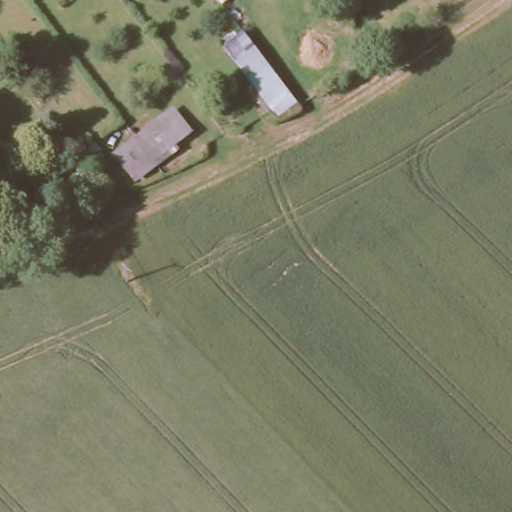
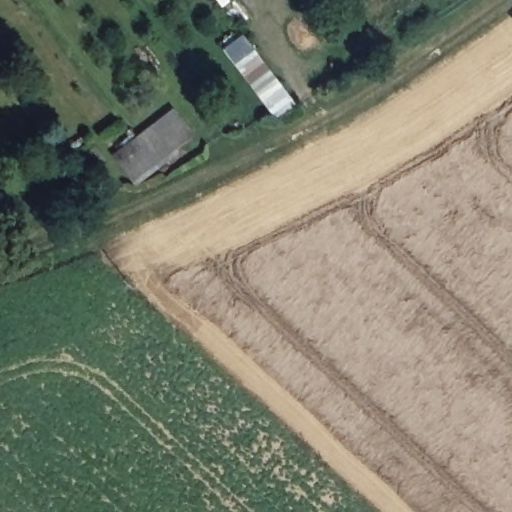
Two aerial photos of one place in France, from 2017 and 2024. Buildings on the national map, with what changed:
unchanged [(227,54),(246,39),(299,108),(276,119),(227,54)]
unchanged [(157,122),(176,107),(196,131),(177,147),(156,164),(136,179),(116,155),(136,139),(157,122)]

